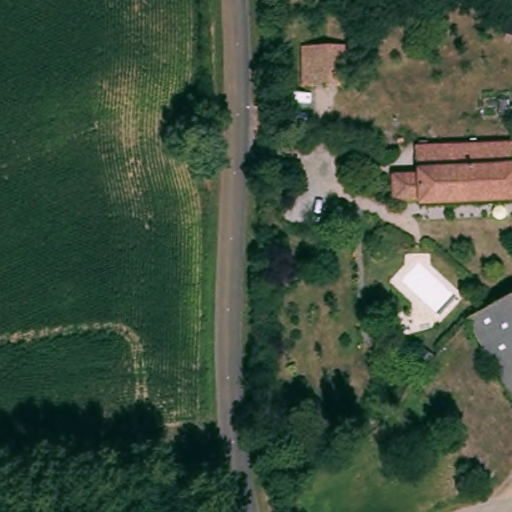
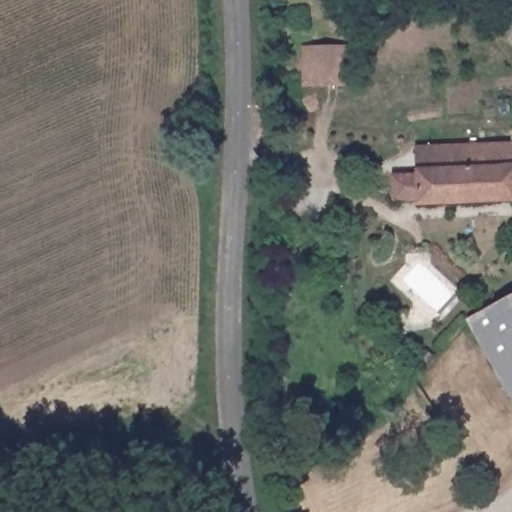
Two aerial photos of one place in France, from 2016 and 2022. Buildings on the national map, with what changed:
unchanged [(303,45),(347,46),(347,86),(302,85),(303,45)]
unchanged [(412,202),(412,197),(386,197),(386,171),(412,172),(411,141),(512,142),(512,201),(412,202)]
unchanged [(465,320),(512,293),(512,402),(465,320)]

